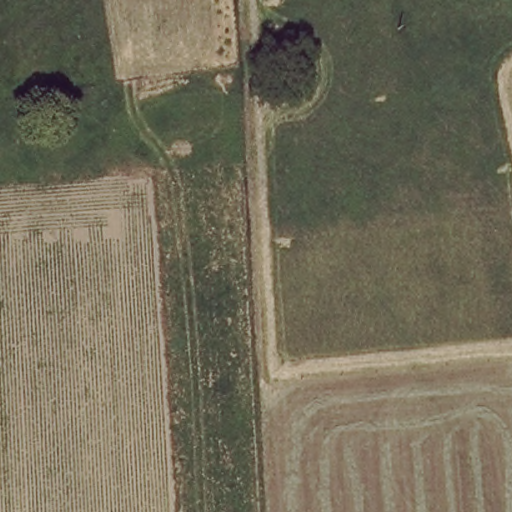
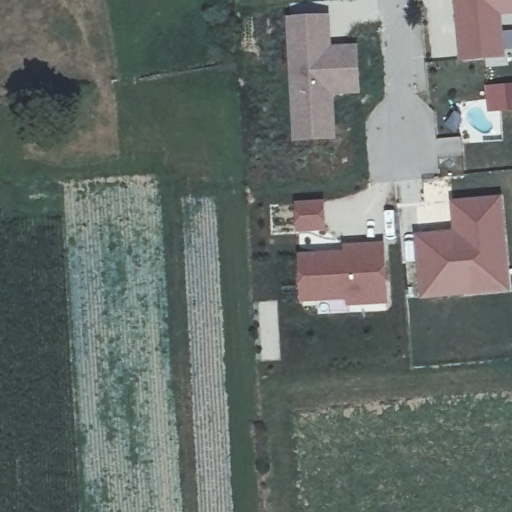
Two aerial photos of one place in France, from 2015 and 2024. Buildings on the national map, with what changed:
new [(501,16),(505,59),(460,65),(454,0),(512,0),(512,15),(501,16)]
new [(330,14),(332,47),(357,45),(362,96),(335,98),(336,141),(294,144),(286,19),(330,14)]
new [(452,230),(450,203),(501,197),(511,291),(421,301),(414,236),(452,230)]
new [(342,251),(342,245),(384,244),(388,305),(350,307),(350,313),(331,313),(331,303),(301,304),(298,255),(342,251)]

